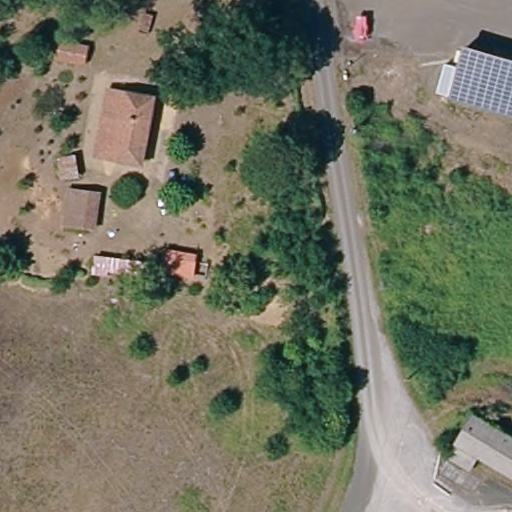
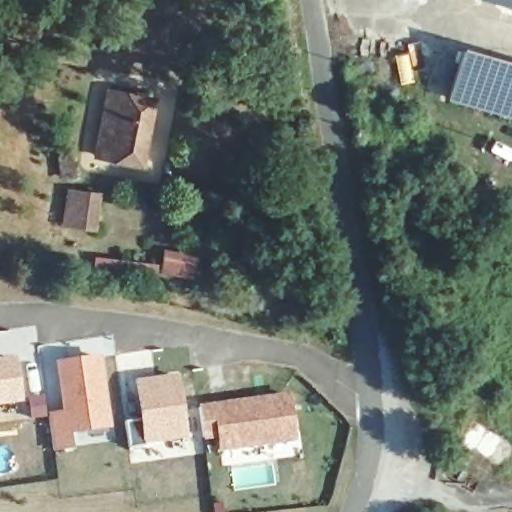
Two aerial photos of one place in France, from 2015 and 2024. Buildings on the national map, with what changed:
unchanged [(40,31),(44,0),(116,0),(108,42),(40,31)]
new [(512,0),(512,8),(483,0),(512,0)]
unchanged [(512,114),(450,96),(462,50),(512,65),(512,114)]
unchanged [(145,164),(102,159),(110,94),(156,101),(145,164)]
unchanged [(70,195),(99,197),(95,228),(68,227),(70,195)]
new [(101,254),(160,261),(158,272),(109,266),(109,271),(99,269),(101,254)]
unchanged [(161,280),(161,268),(205,272),(205,287),(161,280)]
new [(67,413),(67,405),(70,403),(69,398),(66,398),(61,363),(101,358),(110,427),(71,432),(73,447),(55,450),(50,416),(67,413)]
new [(15,360),(21,400),(0,403),(0,362),(15,360)]
new [(188,437),(146,442),(146,446),(128,447),(125,422),(139,418),(134,380),(179,373),(188,437)]
new [(292,395),(298,438),(225,448),(222,436),(207,438),(202,408),(292,395)]
unchanged [(512,478),(483,457),(476,467),(457,453),(482,417),(512,439),(512,478)]

